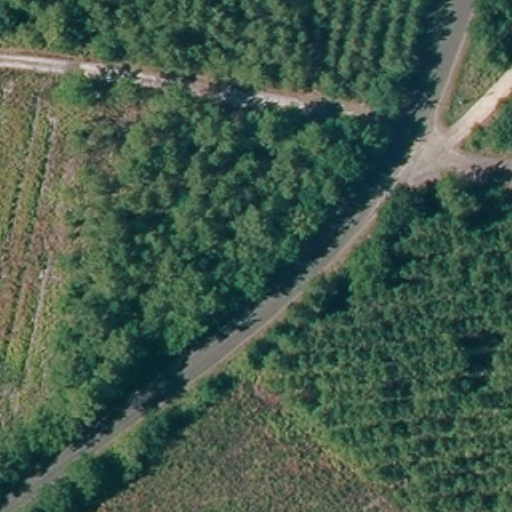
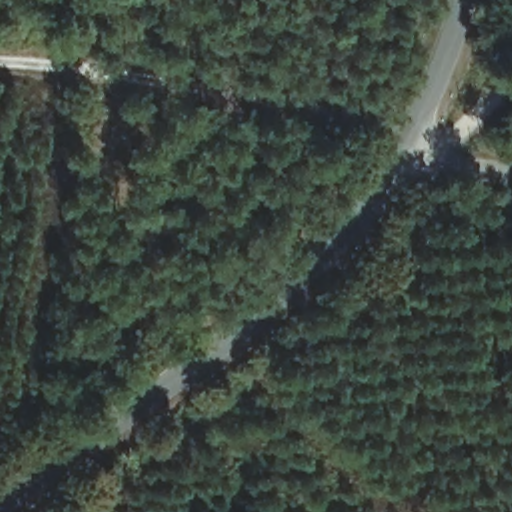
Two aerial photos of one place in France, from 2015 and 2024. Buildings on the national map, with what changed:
[]

